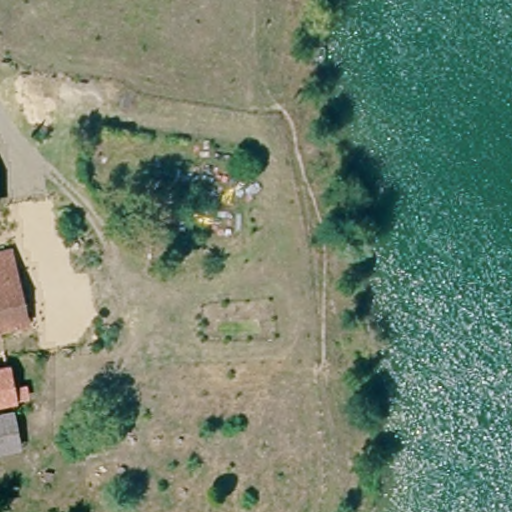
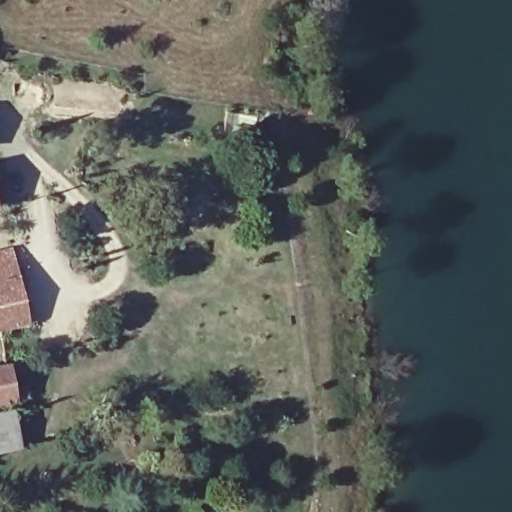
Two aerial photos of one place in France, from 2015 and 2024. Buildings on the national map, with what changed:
unchanged [(24,325),(1,328),(0,329),(0,258),(9,256),(24,325)]
unchanged [(4,367),(11,400),(0,403),(0,368),(4,367)]
unchanged [(36,407),(42,442),(0,454),(0,415),(36,407)]

